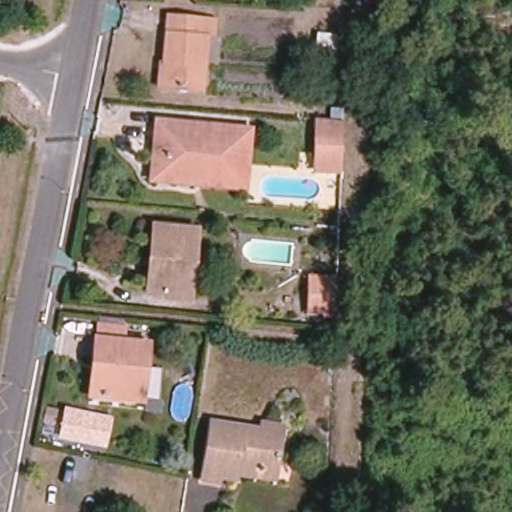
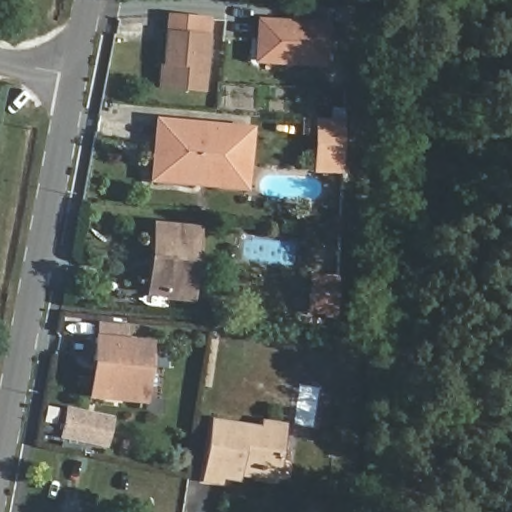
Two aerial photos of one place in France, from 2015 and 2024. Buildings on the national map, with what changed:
unchanged [(0,0),(14,0),(14,2),(0,0)]
unchanged [(204,89),(160,86),(161,62),(165,62),(167,32),(169,16),(216,20),(215,34),(209,33),(204,89)]
new [(327,67),(254,62),(255,18),(329,21),(327,67)]
demolished [(333,65),(317,64),(320,35),(336,36),(333,65)]
unchanged [(313,177),(313,120),(328,120),(329,108),(343,110),(343,123),(342,173),(313,177)]
unchanged [(246,188),(151,180),(157,120),(252,128),(246,188)]
unchanged [(192,300),(167,298),(167,294),(148,292),(154,224),(197,228),(192,300)]
unchanged [(337,307),(324,307),(323,304),(308,304),(308,284),(338,285),(337,307)]
unchanged [(95,323),(128,326),(126,338),(151,340),(146,404),(90,401),(94,336),(95,323)]
unchanged [(106,448),(59,438),(65,407),(113,416),(106,448)]
unchanged [(284,426),(277,468),(240,462),(237,478),(222,476),(220,482),(204,479),(213,421),(263,428),(264,423),(284,426)]

